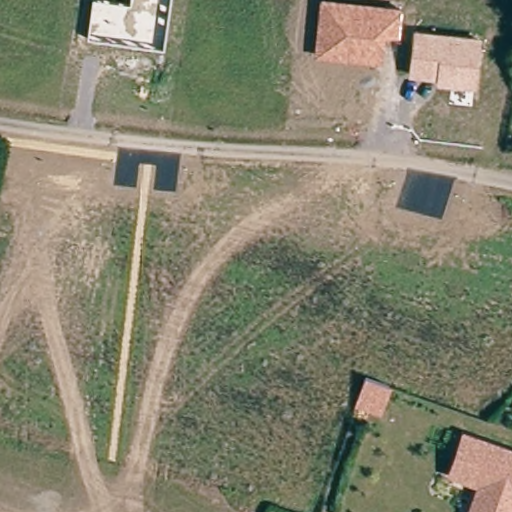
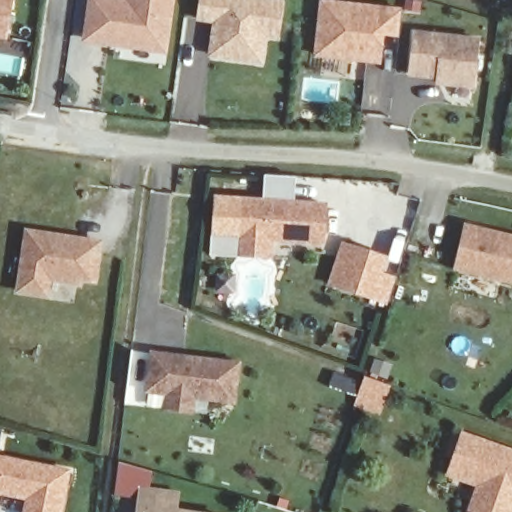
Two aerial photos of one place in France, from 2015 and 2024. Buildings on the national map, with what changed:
new [(7,40),(0,39),(0,0),(14,0),(7,40)]
new [(83,41),(89,0),(176,0),(168,51),(83,41)]
new [(208,58),(213,25),(197,22),(201,0),(277,0),(284,1),(280,38),(267,39),(264,64),(208,58)]
unchanged [(402,5),(398,36),(386,36),(384,63),(314,57),(321,0),(350,0),(402,5)]
unchanged [(482,35),(477,90),(436,85),(437,78),(408,75),(413,28),(482,35)]
unchanged [(243,200),(326,204),(324,243),(270,240),(269,262),(240,261),(241,239),(243,200)]
new [(512,238),(512,280),(457,268),(466,228),(512,238)]
new [(85,239),(101,241),(100,252),(97,277),(81,275),(80,279),(51,276),(49,295),(20,291),(27,232),(85,239)]
unchanged [(372,252),(387,257),(382,271),(398,277),(390,302),(332,282),(345,242),(372,252)]
new [(148,395),(152,353),(172,355),(184,356),(240,361),(236,403),(193,399),(192,413),(167,410),(168,397),(148,395)]
unchanged [(365,375),(389,384),(379,410),(356,402),(365,375)]
unchanged [(484,479),(454,468),(468,430),(512,446),(512,500),(508,512),(472,512),(472,511),(484,479)]
new [(0,495),(0,456),(71,470),(64,512),(24,512),(26,500),(0,495)]
new [(180,509),(204,512),(137,512),(141,486),(182,490),(180,509)]

